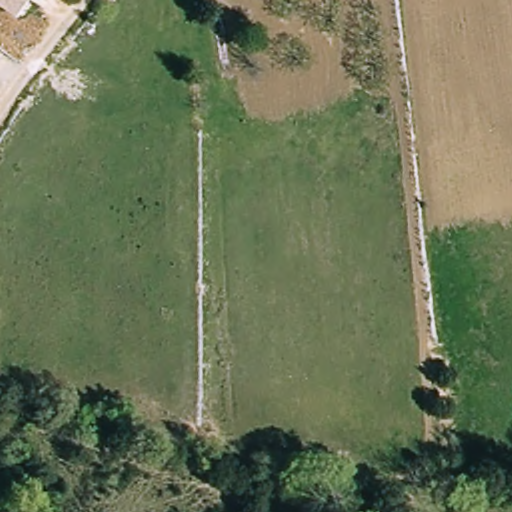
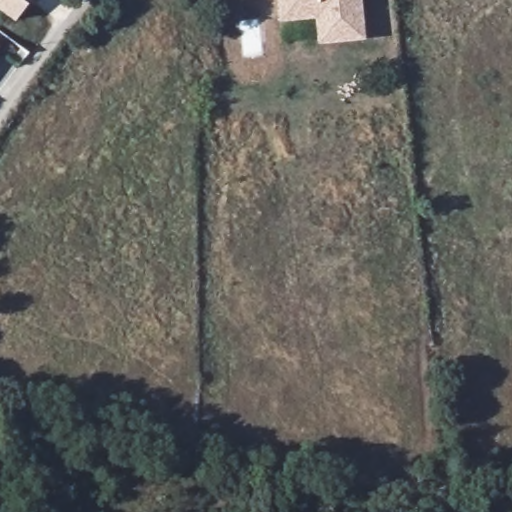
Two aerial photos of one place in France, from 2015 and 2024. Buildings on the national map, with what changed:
unchanged [(28,4),(15,21),(0,10),(0,0),(24,0),(28,4)]
new [(282,18),(281,0),(363,0),(367,46),(322,50),(320,21),(283,24),(282,18)]
demolished [(228,79),(240,75),(243,92),(233,95),(228,79)]

